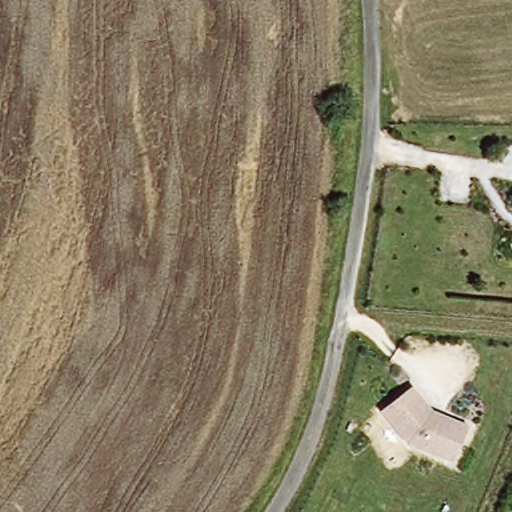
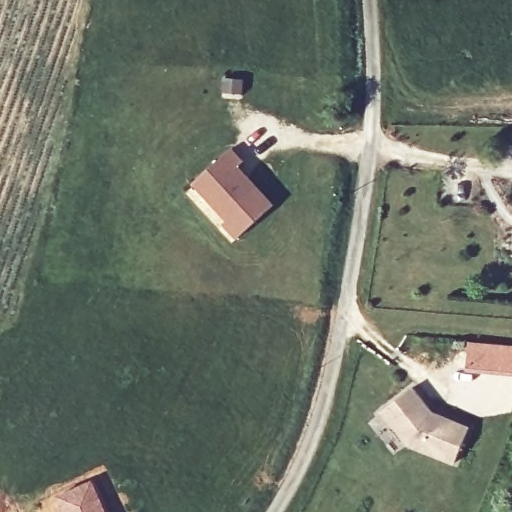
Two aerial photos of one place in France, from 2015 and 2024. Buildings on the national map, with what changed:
new [(240,165),(275,204),(237,237),(223,223),(226,220),(193,184),(233,147),(245,160),(240,165)]
unchanged [(462,434),(447,470),(401,452),(374,420),(404,395),(425,421),(462,434)]
new [(109,512),(51,512),(46,498),(92,477),(109,512)]

